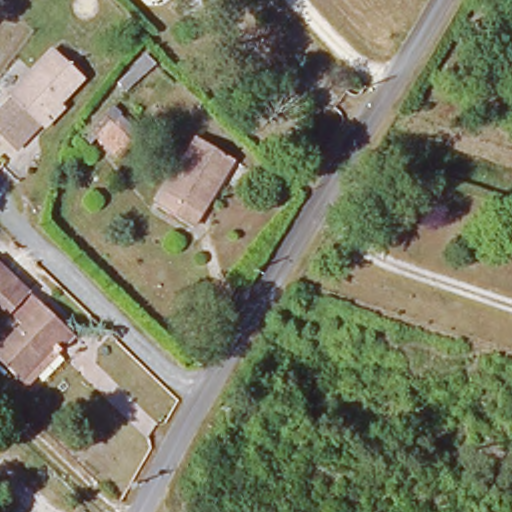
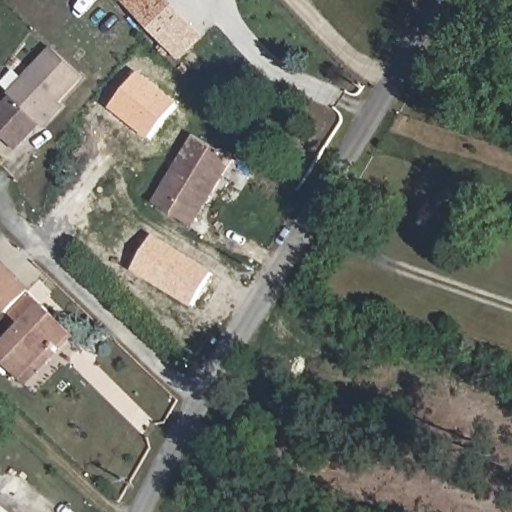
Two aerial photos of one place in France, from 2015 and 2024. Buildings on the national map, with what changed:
new [(205,37),(180,61),(120,0),(169,0),(205,37)]
unchanged [(0,128),(0,108),(3,105),(52,52),(77,80),(31,128),(16,144),(0,128)]
new [(110,109),(139,72),(177,104),(149,140),(110,109)]
unchanged [(137,133),(127,147),(109,132),(97,146),(87,137),(105,110),(137,133)]
unchanged [(181,161),(194,141),(227,165),(187,229),(154,206),(180,161),(181,161)]
new [(212,273),(193,306),(134,270),(154,237),(212,273)]
unchanged [(23,294),(6,313),(0,308),(0,271),(23,294)]
unchanged [(18,384),(0,366),(0,345),(37,305),(71,338),(56,356),(55,355),(24,389),(18,384)]

